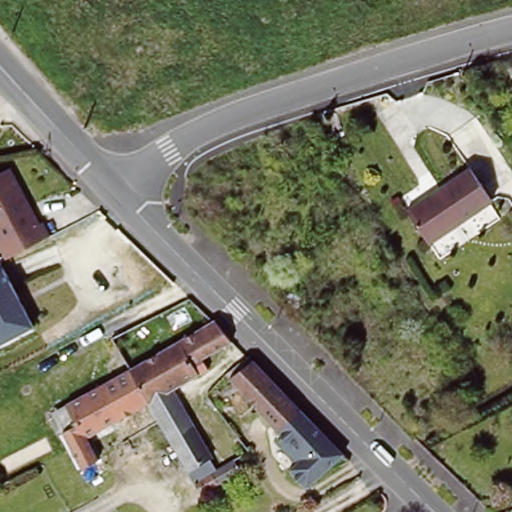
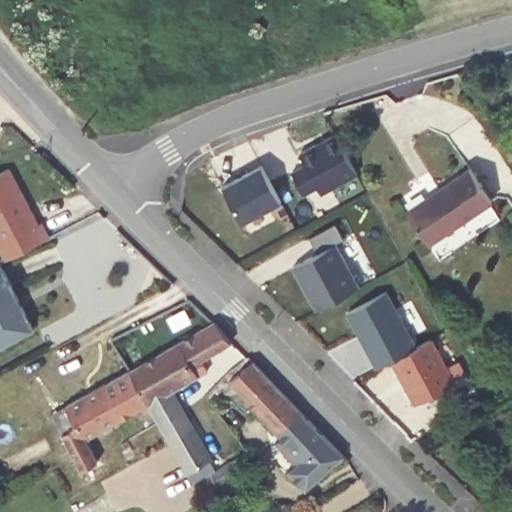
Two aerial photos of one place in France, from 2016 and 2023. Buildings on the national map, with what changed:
new [(261,167),(280,201),(242,222),(222,186),(261,167)]
unchanged [(0,259),(0,177),(8,173),(34,223),(37,221),(47,242),(2,265),(0,259)]
unchanged [(485,205),(424,249),(404,214),(463,175),(485,205)]
new [(320,252),(309,238),(336,224),(344,239),(337,244),(360,286),(317,309),(294,267),(320,252)]
unchanged [(35,329),(0,347),(0,265),(35,329)]
new [(390,360),(377,366),(348,312),(389,292),(417,347),(390,360)]
unchanged [(215,322),(232,344),(201,360),(207,370),(190,380),(172,390),(148,403),(129,371),(212,325),(215,322)]
new [(417,347),(429,340),(451,384),(413,404),(390,360),(417,347)]
unchanged [(231,381),(252,362),(299,409),(276,431),(231,381)]
unchanged [(139,409),(88,438),(99,458),(83,468),(57,421),(65,417),(62,413),(68,410),(65,406),(129,371),(148,403),(139,409)]
unchanged [(172,390),(211,460),(189,473),(179,455),(171,442),(159,422),(155,417),(148,403),(172,390)]
unchanged [(283,439),(276,431),(299,409),(344,455),(307,489),(290,471),(297,465),(277,443),(283,439)]
unchanged [(218,484),(202,494),(195,484),(212,474),(218,484)]

